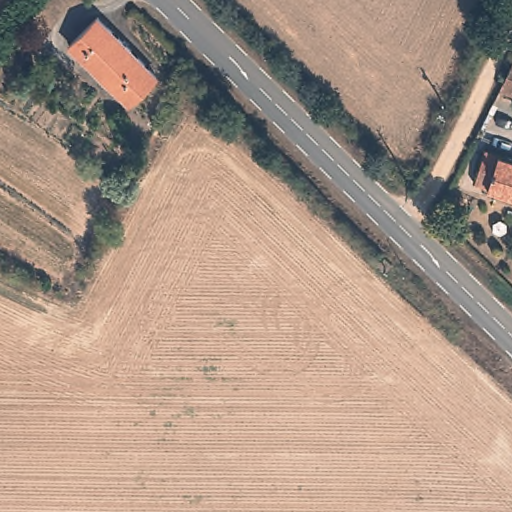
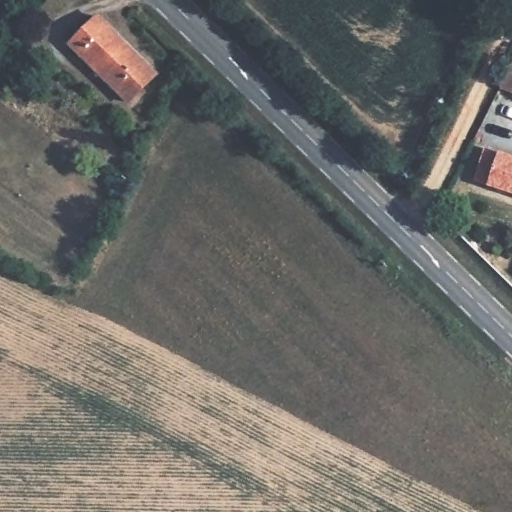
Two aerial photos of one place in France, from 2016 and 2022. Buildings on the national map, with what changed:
unchanged [(69,55),(97,26),(156,85),(128,113),(69,55)]
unchanged [(512,93),(499,88),(512,59),(512,93)]
unchanged [(512,162),(512,199),(473,186),(484,153),(512,162)]

